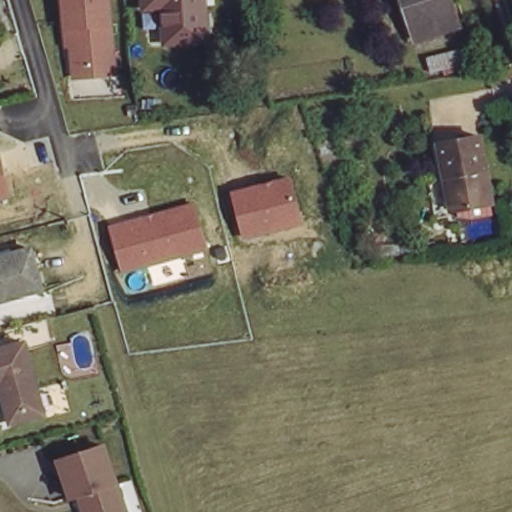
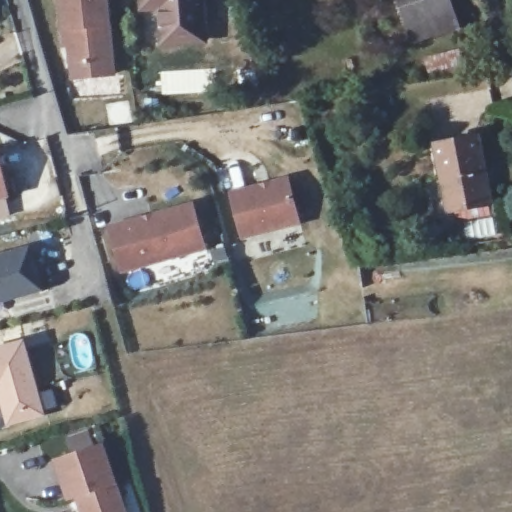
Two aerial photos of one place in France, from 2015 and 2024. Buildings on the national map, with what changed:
unchanged [(71,47),(64,47),(59,0),(111,0),(119,76),(73,81),(71,47)]
unchanged [(163,45),(164,7),(146,8),(146,0),(200,0),(201,44),(163,45)]
unchanged [(414,39),(402,0),(450,0),(458,26),(414,39)]
unchanged [(494,200),(458,206),(454,180),(446,181),(439,146),(483,138),(494,200)]
unchanged [(0,199),(0,153),(10,197),(0,199)]
unchanged [(289,175),(303,225),(243,240),(229,191),(289,175)]
unchanged [(194,202),(208,250),(123,272),(111,226),(194,202)]
unchanged [(41,287),(13,295),(0,298),(0,252),(30,244),(41,287)]
unchanged [(8,422),(0,395),(0,347),(19,341),(43,412),(8,422)]
unchanged [(124,512),(83,512),(77,493),(68,497),(56,460),(103,445),(124,512)]

